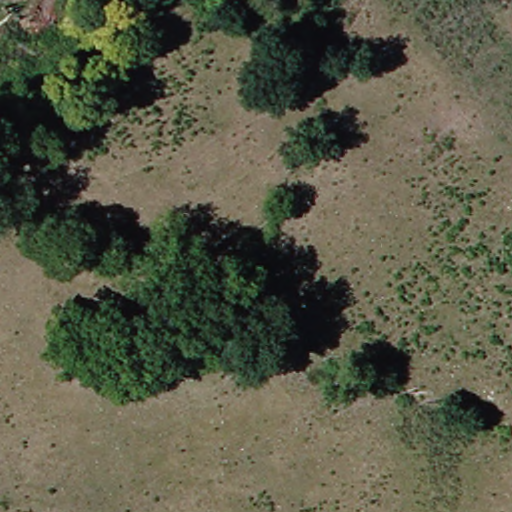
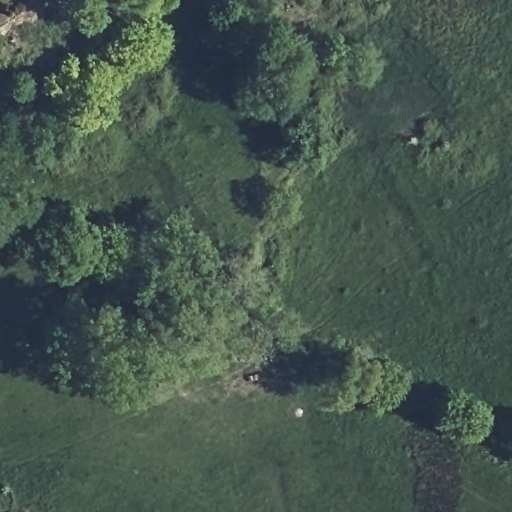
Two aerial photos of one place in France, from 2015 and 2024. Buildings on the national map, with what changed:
[]

